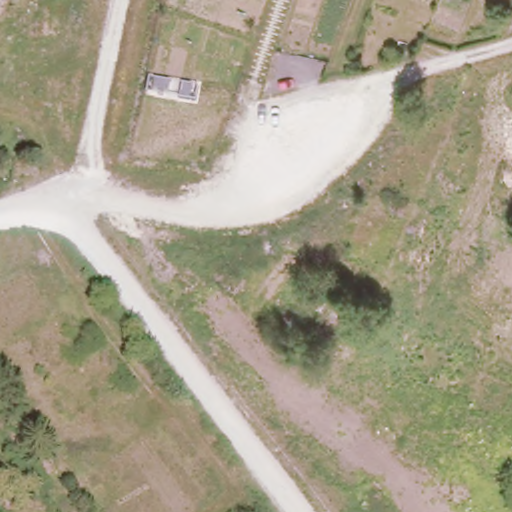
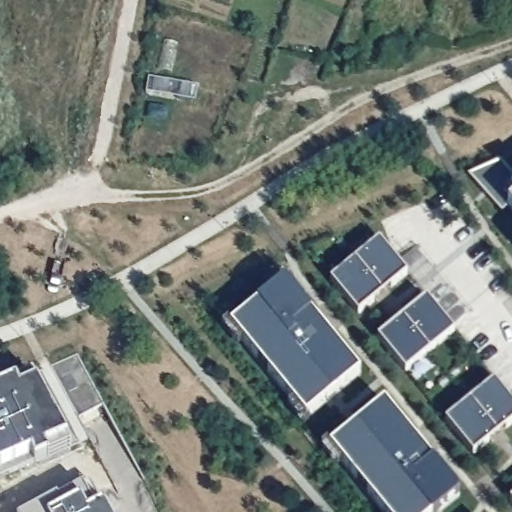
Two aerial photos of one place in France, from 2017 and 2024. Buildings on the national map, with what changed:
new [(512,203),(512,213),(507,207),(512,203)]
new [(407,275),(391,288),(389,286),(372,299),(374,302),(358,315),(330,281),(380,241),(407,275)]
new [(360,374),(305,419),(230,327),(285,282),(360,374)]
new [(405,372),(378,338),(393,325),(395,328),(412,314),(410,312),(426,298),(455,332),(405,372)]
demolished [(335,315),(330,333),(310,327),(315,310),(335,315)]
new [(27,376),(42,369),(47,377),(77,433),(82,442),(60,451),(0,477),(0,387),(27,376)]
new [(512,423),(473,455),(445,421),(462,408),(463,410),(480,397),(478,394),(494,381),(512,403),(512,423)]
new [(439,512),(382,512),(330,448),(383,403),(459,496),(439,512)]
new [(68,495),(93,482),(100,478),(113,501),(119,512),(32,512),(67,493),(68,495)]
demolished [(382,488),(372,505),(362,500),(372,482),(382,488)]
new [(512,498),(512,503),(510,500),(512,498)]

